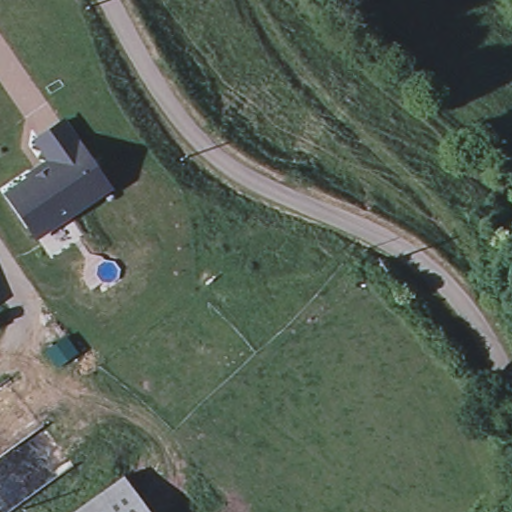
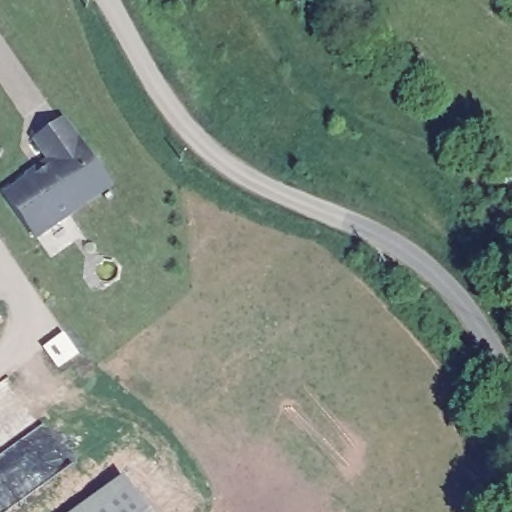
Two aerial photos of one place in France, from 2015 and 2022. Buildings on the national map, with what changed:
unchanged [(112,188),(35,241),(0,190),(43,159),(30,140),(65,116),(112,188)]
unchanged [(123,475),(151,512),(71,512),(123,475)]

